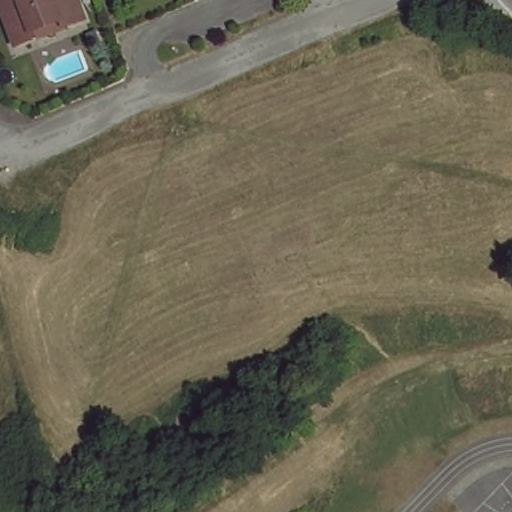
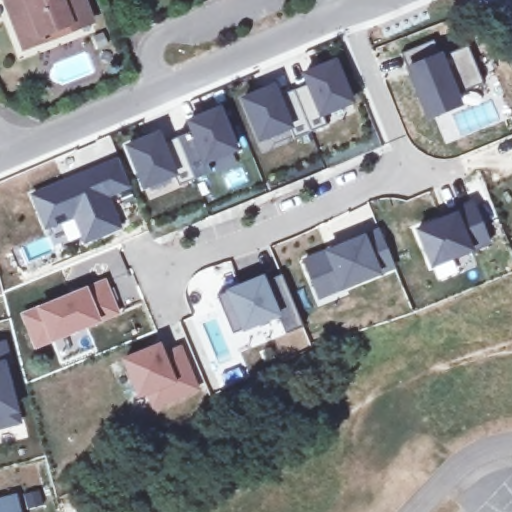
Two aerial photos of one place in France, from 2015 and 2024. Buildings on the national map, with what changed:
unchanged [(89,19),(66,29),(63,20),(34,32),(38,39),(20,45),(9,17),(15,15),(11,4),(4,6),(1,0),(82,0),(89,19)]
new [(436,41),(443,57),(470,45),(486,82),(459,95),(464,104),(433,117),(412,70),(410,70),(403,55),(436,41)]
new [(311,87),(307,77),(338,65),(354,105),(324,116),(329,129),(313,135),(296,93),(311,87)]
new [(296,141),(292,130),(262,141),(246,102),(277,90),(280,99),(296,93),(313,135),(296,141)]
new [(194,134),(190,124),(221,112),(237,152),(207,164),(212,175),(196,182),(179,140),(194,134)]
new [(180,189),(175,177),(145,189),(129,149),(160,136),(164,146),(179,140),(196,182),(180,189)]
new [(118,155),(132,189),(112,197),(124,227),(84,244),(71,220),(45,231),(28,192),(118,155)]
new [(458,217),(456,214),(476,206),(492,246),(434,269),(420,233),(458,217)]
new [(322,304),(318,292),(306,264),(382,234),(396,270),(344,291),(341,283),(345,295),(322,304)]
new [(304,330),(286,337),(278,318),(233,336),(218,298),(254,283),(256,288),(283,277),(304,330)]
new [(264,280),(266,284),(256,288),(254,283),(264,280)]
new [(104,285),(116,315),(35,345),(24,316),(104,285)]
new [(4,342),(9,361),(2,362),(18,420),(0,425),(0,343),(4,342)]
new [(159,348),(163,358),(180,351),(196,391),(154,408),(148,393),(139,397),(125,362),(159,348)]
new [(17,512),(0,512),(0,500),(13,496),(17,512)]

